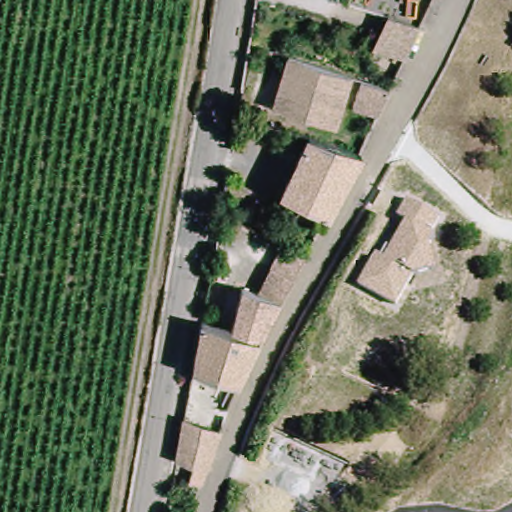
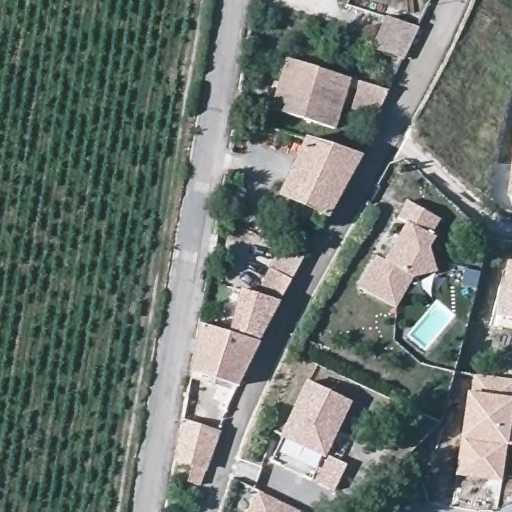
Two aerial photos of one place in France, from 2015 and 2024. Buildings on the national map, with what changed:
unchanged [(405,55),(391,51),(374,45),(388,15),(391,15),(419,24),(405,55)]
unchanged [(353,76),(343,102),(335,127),(287,113),(274,110),(291,57),(305,61),(316,65),(353,76)]
unchanged [(356,107),(359,100),(355,98),(363,80),(391,90),(380,115),(356,107)]
unchanged [(281,198),(308,141),(362,159),(330,218),(281,198)]
new [(512,158),(512,196),(507,195),(512,158)]
unchanged [(391,303),(358,286),(377,254),(382,256),(388,245),(391,248),(408,220),(398,215),(408,200),(442,220),(432,235),(437,237),(430,247),(437,270),(415,275),(397,306),(391,303)]
unchanged [(228,328),(239,282),(256,285),(269,260),(281,236),(305,248),(292,270),(282,292),(257,333),(228,328)]
new [(512,260),(512,322),(500,320),(510,260),(512,260)]
new [(472,285),(459,282),(462,268),(475,271),(472,285)]
unchanged [(234,383),(191,370),(199,320),(228,328),(257,333),(234,383)]
new [(475,397),(477,376),(509,381),(505,401),(512,402),(512,432),(500,430),(495,434),(488,481),(458,477),(472,397),(475,397)]
new [(271,461),(282,438),(308,383),(351,403),(325,455),(346,467),(334,492),(271,461)]
unchanged [(173,464),(181,417),(216,426),(198,483),(186,480),(189,466),(173,464)]
new [(500,430),(512,432),(512,446),(507,445),(502,483),(488,481),(495,434),(500,430)]
new [(297,512),(249,512),(259,494),(297,512)]

